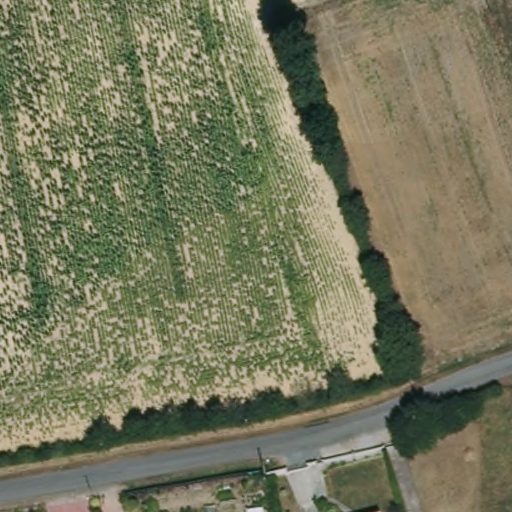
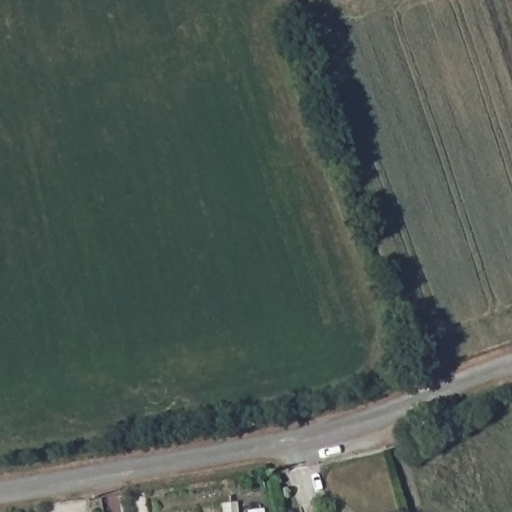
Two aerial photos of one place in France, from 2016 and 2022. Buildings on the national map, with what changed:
[]

